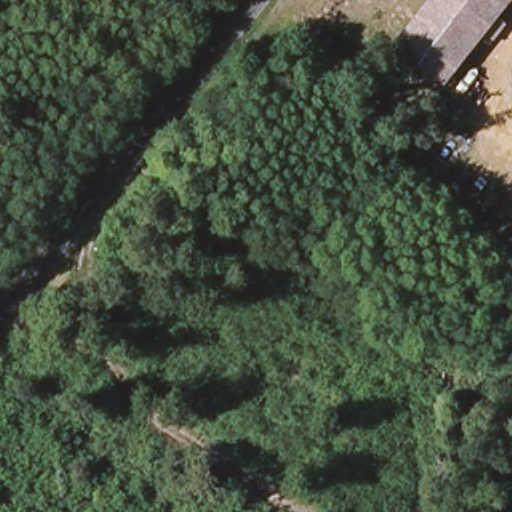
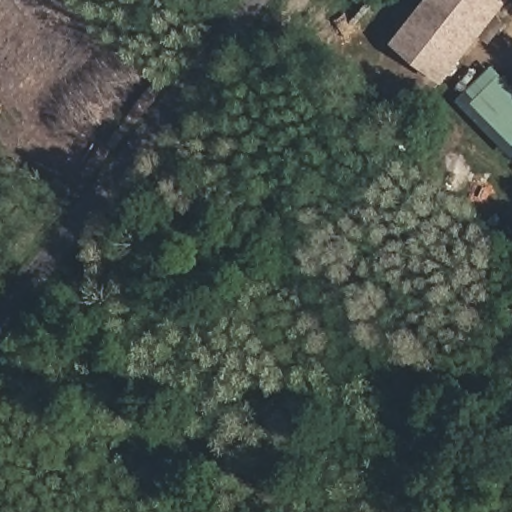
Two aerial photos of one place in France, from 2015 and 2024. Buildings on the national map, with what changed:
unchanged [(441,81),(393,43),(427,0),(504,0),(441,81)]
new [(512,85),(512,149),(459,100),(491,65),(512,85)]

